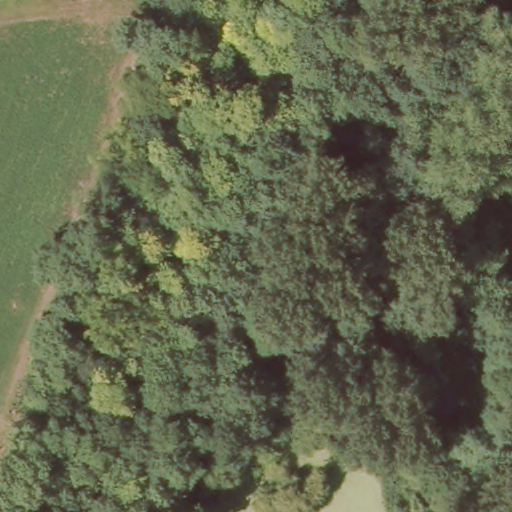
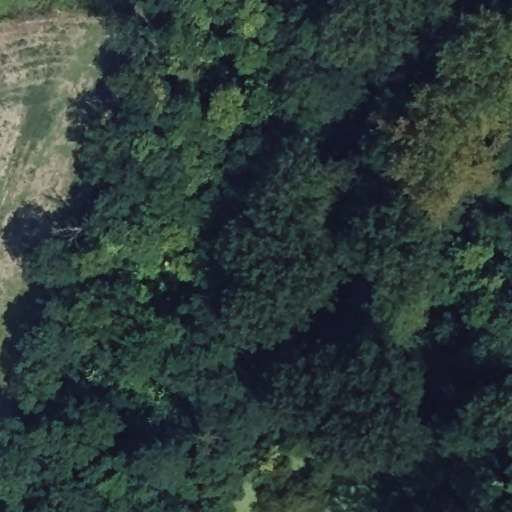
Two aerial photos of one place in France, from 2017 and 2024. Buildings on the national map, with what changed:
unchanged [(425,457),(427,480),(412,481),(411,458),(425,457)]

